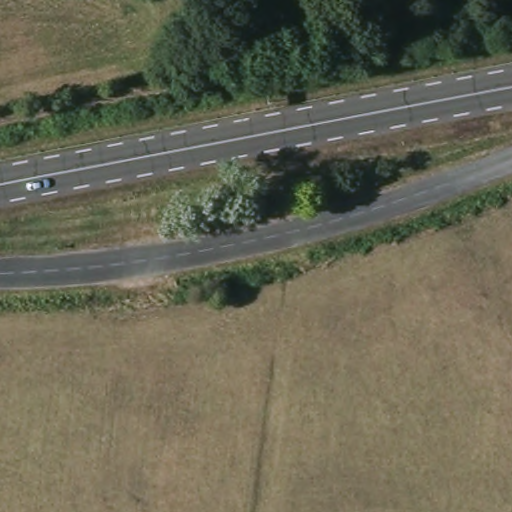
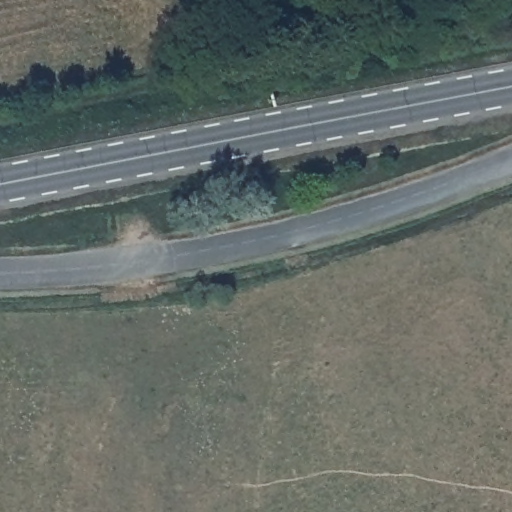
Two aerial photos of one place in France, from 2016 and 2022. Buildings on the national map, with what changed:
[]

